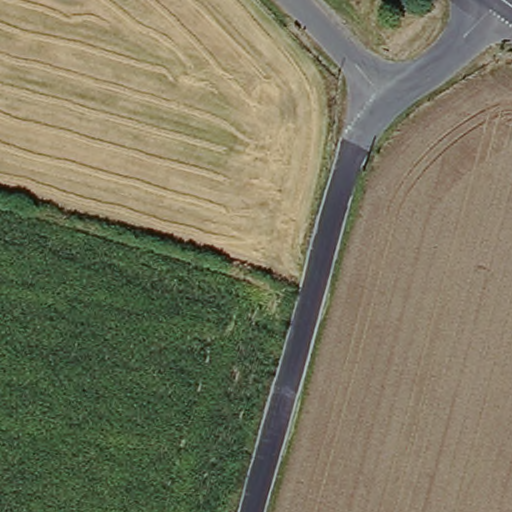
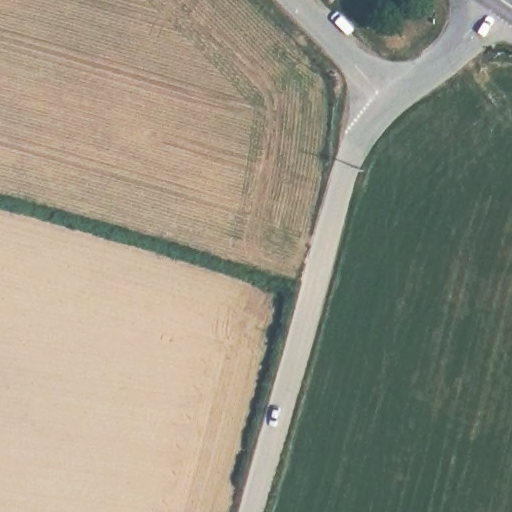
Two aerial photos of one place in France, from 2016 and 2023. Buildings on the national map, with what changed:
[]

